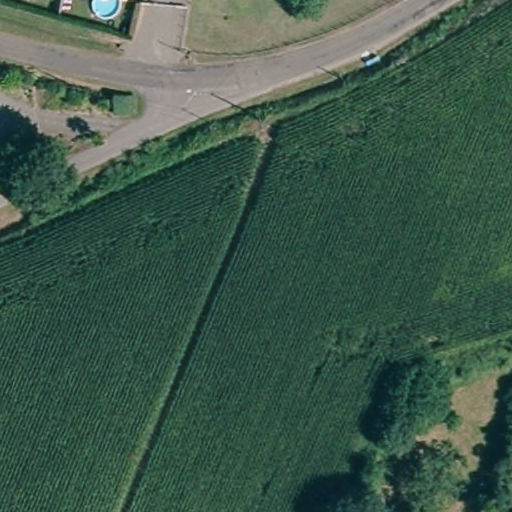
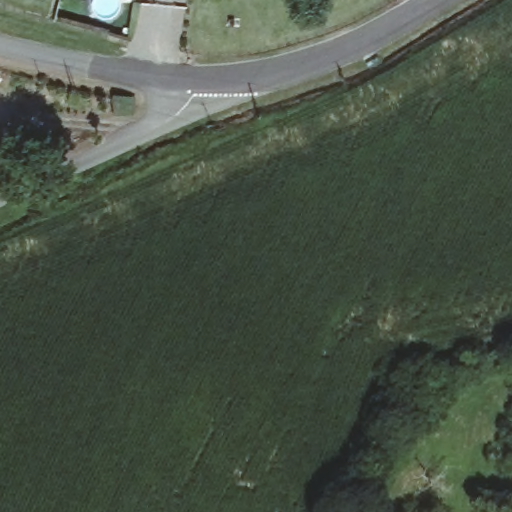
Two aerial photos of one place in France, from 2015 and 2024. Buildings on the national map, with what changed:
unchanged [(28,151),(17,157),(19,161),(0,167),(0,141),(21,134),(28,151)]

